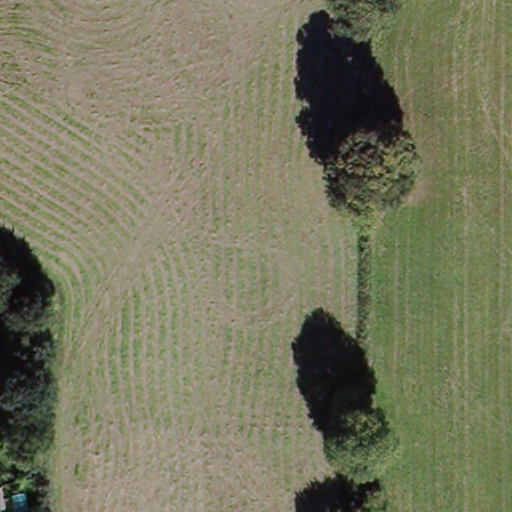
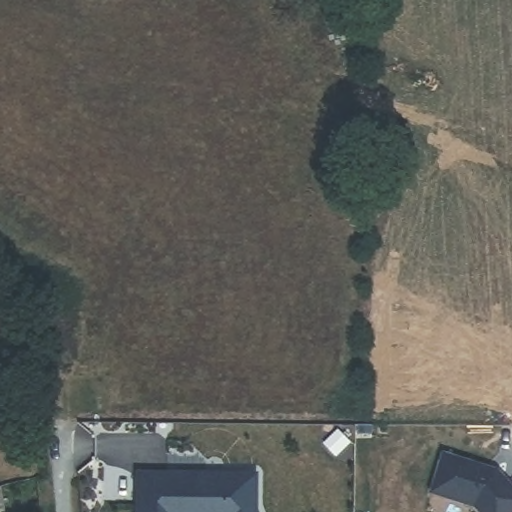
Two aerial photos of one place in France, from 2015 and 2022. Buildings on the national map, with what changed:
new [(443,457),(497,473),(512,490),(512,512),(478,512),(474,508),(431,495),(443,457)]
new [(255,482),(255,512),(136,512),(136,480),(255,482)]
unchanged [(3,489),(6,507),(0,508),(0,490),(3,489)]

